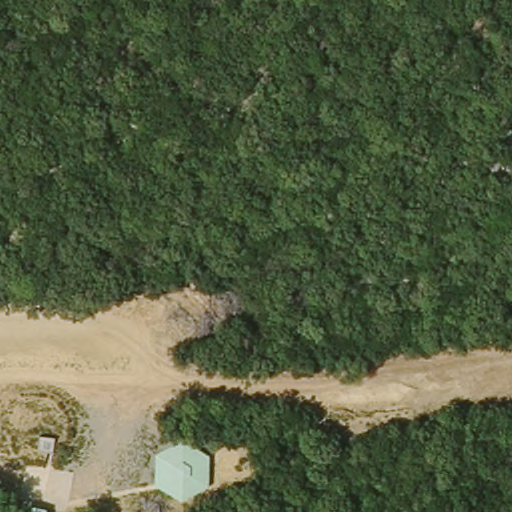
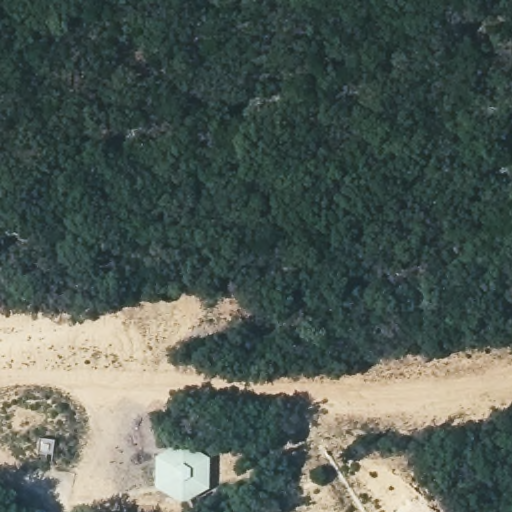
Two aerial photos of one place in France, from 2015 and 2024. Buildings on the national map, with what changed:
unchanged [(159,455),(188,439),(213,455),(217,489),(189,504),(160,486),(159,455)]
unchanged [(27,504),(52,512),(26,512),(27,504)]

